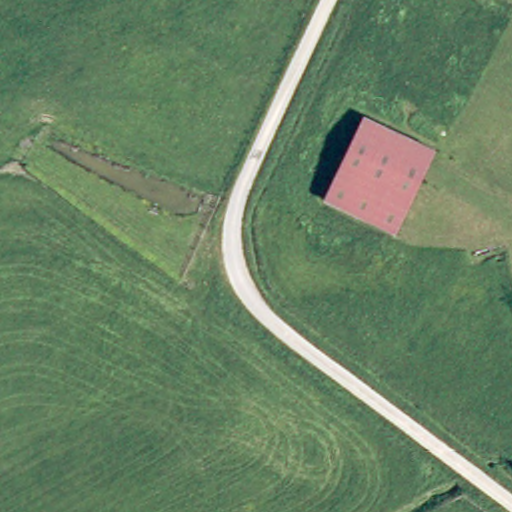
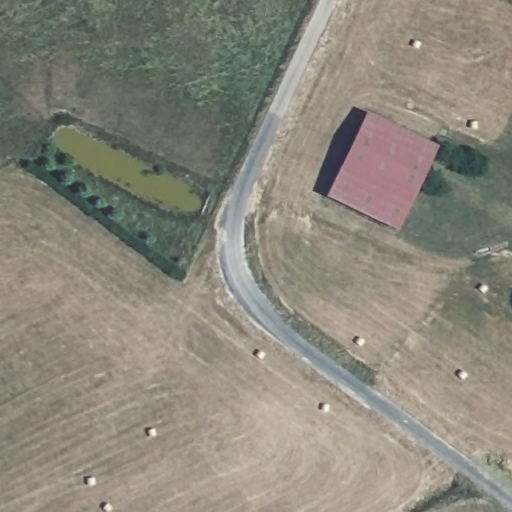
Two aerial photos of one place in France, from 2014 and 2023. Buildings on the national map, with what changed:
unchanged [(332,192),(371,111),(441,144),(402,226),(332,192)]

